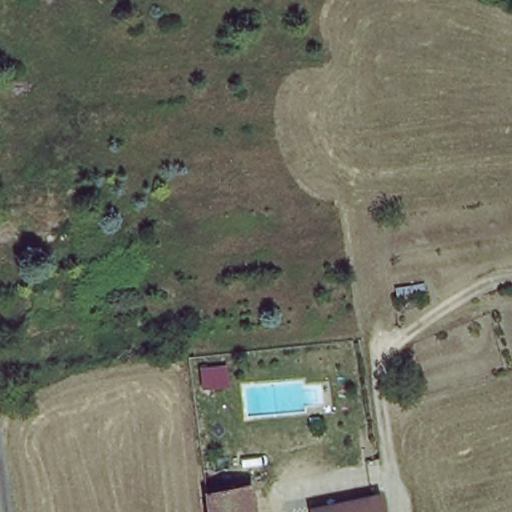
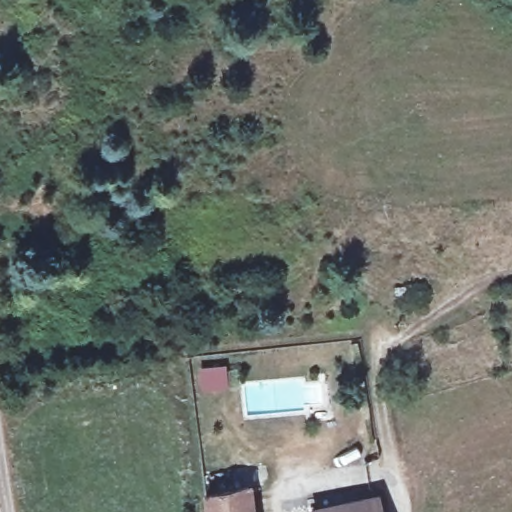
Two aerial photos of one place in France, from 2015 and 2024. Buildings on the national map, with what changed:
unchanged [(253,487),(255,512),(208,512),(207,493),(253,487)]
unchanged [(310,512),(310,511),(319,509),(372,491),(378,512),(310,512)]

